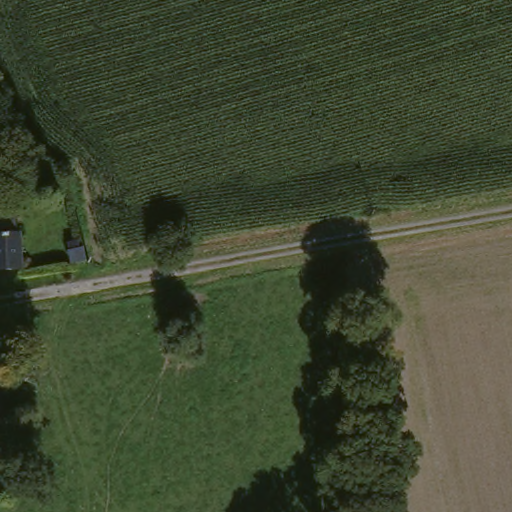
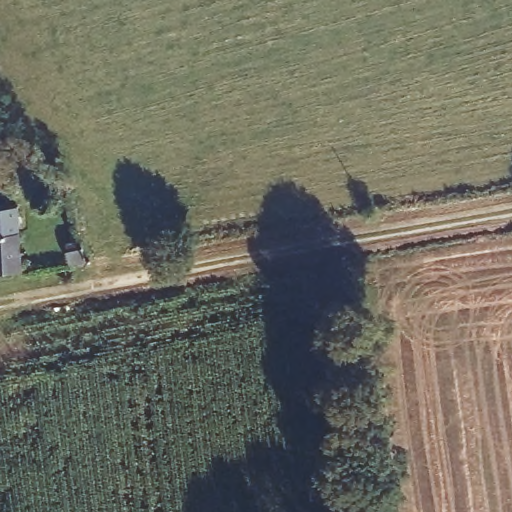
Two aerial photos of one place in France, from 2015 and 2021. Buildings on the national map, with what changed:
unchanged [(18,272),(0,274),(0,218),(6,217),(9,237),(12,236),(13,238),(18,272)]
unchanged [(74,250),(72,240),(83,238),(86,247),(74,250)]

